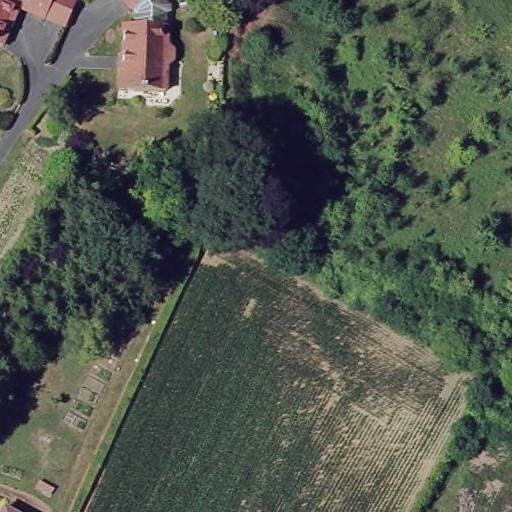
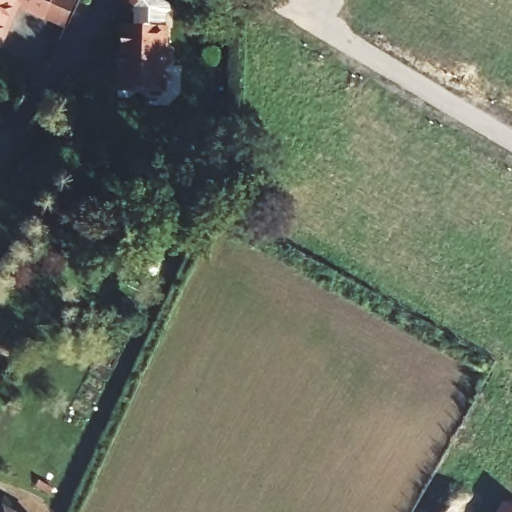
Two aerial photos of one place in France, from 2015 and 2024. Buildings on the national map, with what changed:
unchanged [(19,5),(12,19),(15,21),(2,46),(0,46),(0,0),(78,0),(65,26),(47,18),(19,5)]
unchanged [(140,19),(106,0),(170,0),(166,42),(174,46),(173,62),(165,67),(163,93),(117,92),(120,69),(122,69),(124,25),(140,26),(140,19)]
new [(503,501),(512,506),(512,512),(497,512),(503,501)]
unchanged [(2,503),(20,512),(0,512),(0,509),(2,503)]

